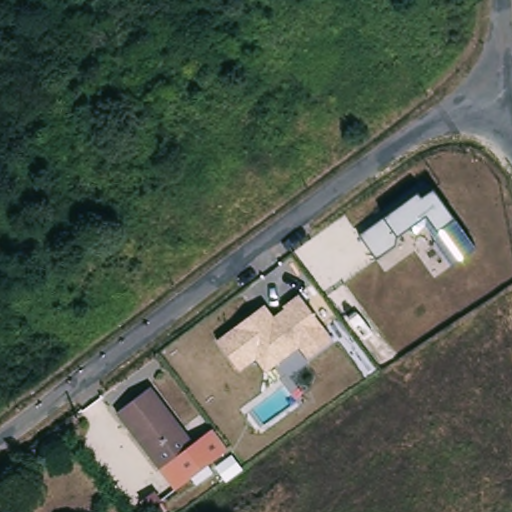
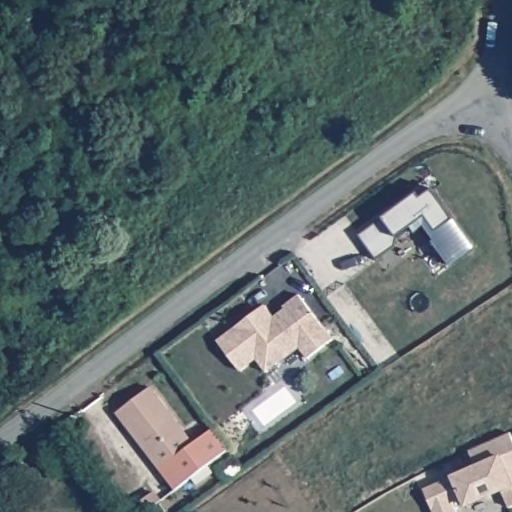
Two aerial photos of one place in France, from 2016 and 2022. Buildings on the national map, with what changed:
unchanged [(359,236),(382,218),(416,194),(420,198),(433,189),(452,218),(474,249),(453,266),(421,221),(398,237),(397,246),(375,260),(359,236)]
unchanged [(216,339),(264,305),(272,316),(284,309),(282,307),(299,294),(332,340),(307,359),(299,347),(265,371),(256,358),(238,371),(216,339)]
unchanged [(198,445),(165,470),(121,413),(154,388),(198,445)]
unchanged [(198,445),(195,441),(212,429),(228,448),(177,488),(165,470),(198,445)]
new [(508,435),(512,442),(512,508),(507,510),(500,493),(463,509),(460,500),(450,505),(453,512),(430,512),(421,492),(474,469),(467,453),(508,435)]
unchanged [(147,511),(140,502),(153,493),(159,502),(147,511)]

